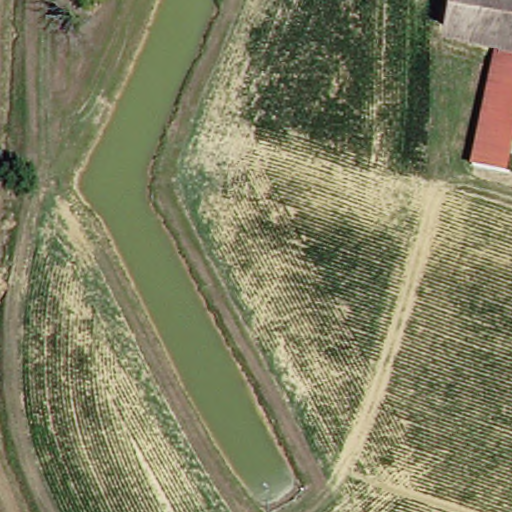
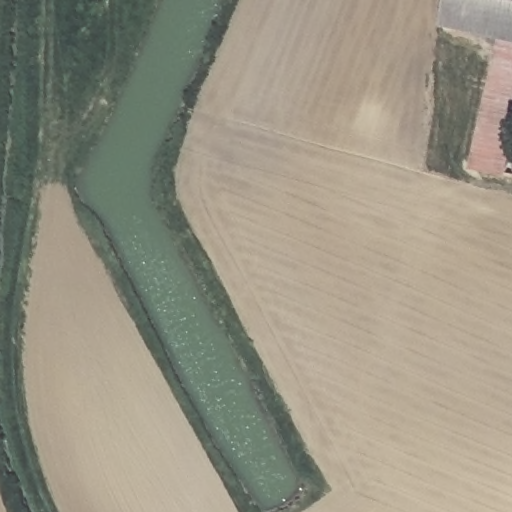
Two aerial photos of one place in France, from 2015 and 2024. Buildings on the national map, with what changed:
unchanged [(493,29),(442,17),(445,0),(512,0),(512,34),(493,29)]
unchanged [(500,166),(467,159),(493,29),(512,34),(512,105),(500,166)]

